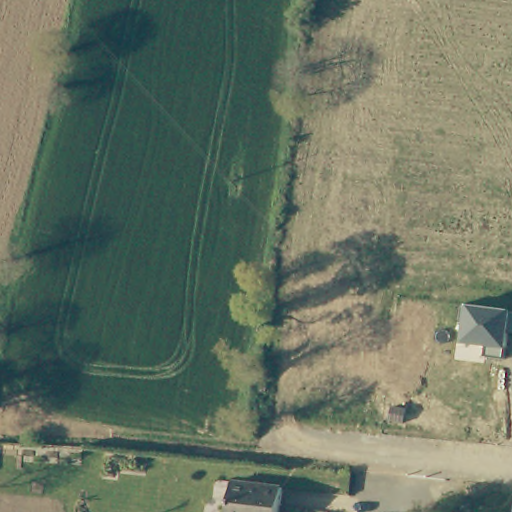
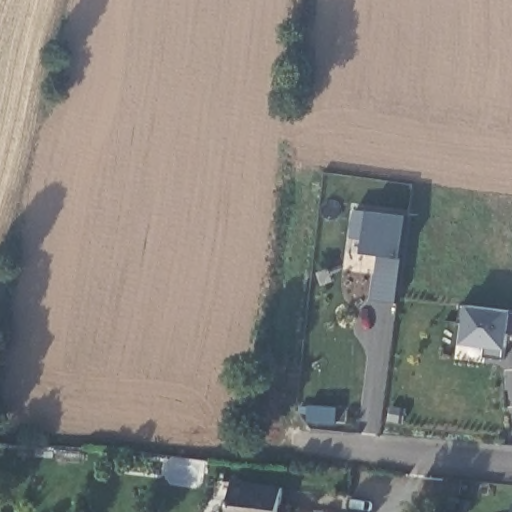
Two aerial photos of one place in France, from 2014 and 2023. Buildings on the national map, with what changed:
new [(375,300),(382,256),(365,252),(366,240),(352,237),(357,210),(370,212),(411,217),(400,303),(375,300)]
unchanged [(511,336),(510,348),(505,361),(487,358),(491,348),(463,345),(469,306),(512,310),(512,336),(511,336)]
new [(312,405),(339,407),(337,423),(310,421),(312,405)]
unchanged [(279,512),(231,512),(237,482),(283,490),(279,512)]

